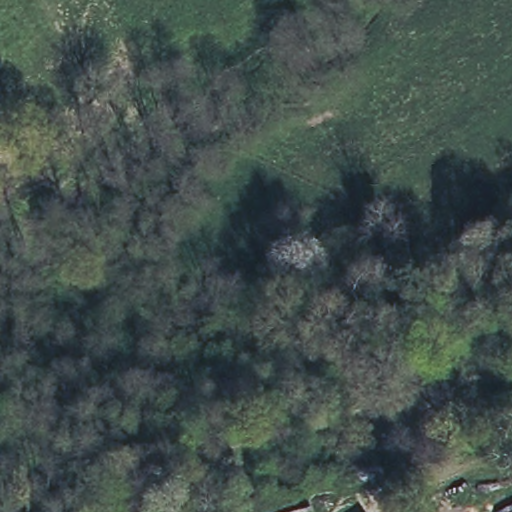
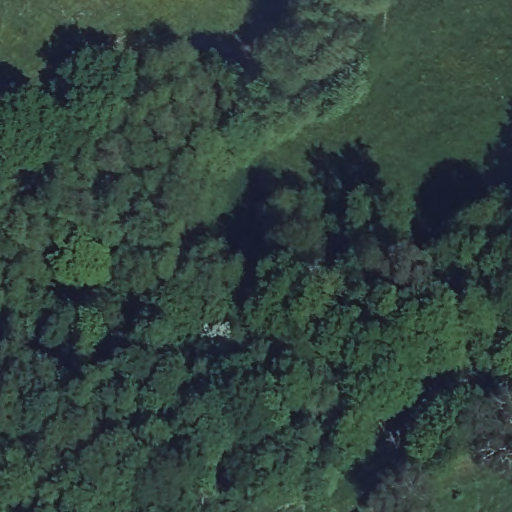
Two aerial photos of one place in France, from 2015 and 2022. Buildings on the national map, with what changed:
[]

